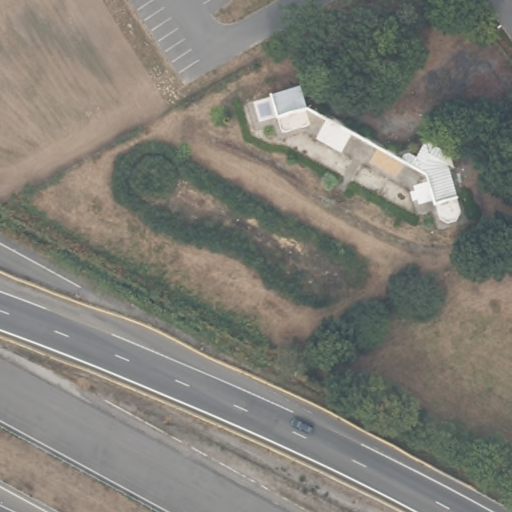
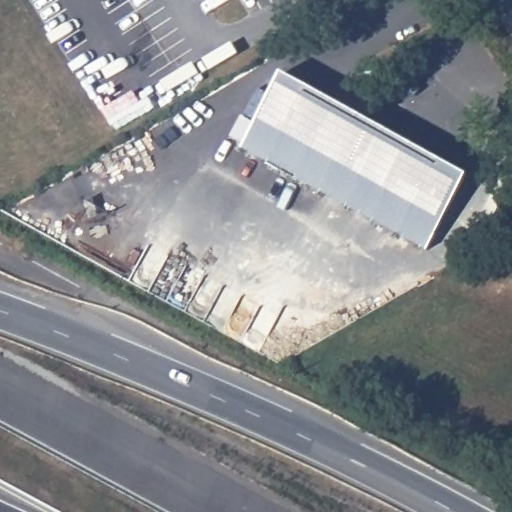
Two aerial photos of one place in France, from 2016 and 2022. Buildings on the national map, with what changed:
new [(244,143),(231,136),(242,116),(254,123),(283,72),(469,175),(428,251),(241,148),(244,143)]
demolished [(277,118),(258,123),(252,100),(301,87),(308,111),(277,119),(277,118)]
demolished [(459,193),(453,190),(466,238),(462,246),(452,248),(444,244),(431,201),(409,189),(405,187),(409,180),(414,179),(422,182),(431,167),(450,177),(453,171),(459,193)]

